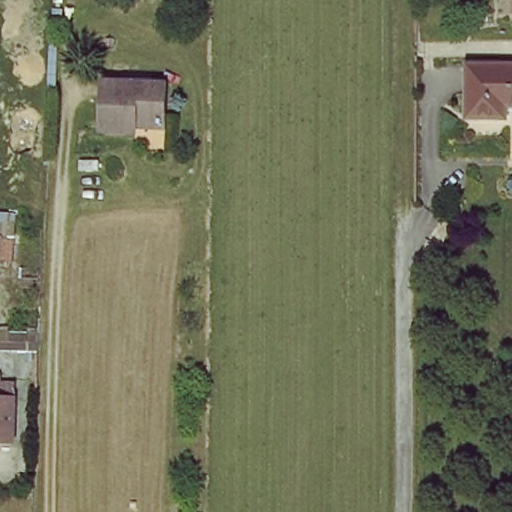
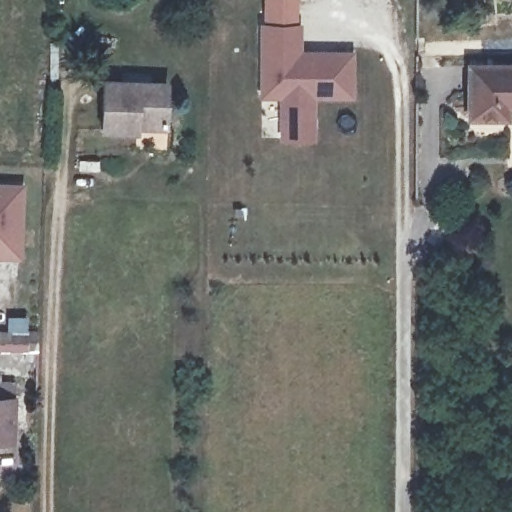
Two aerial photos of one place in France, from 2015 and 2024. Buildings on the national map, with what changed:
new [(280,140),(279,99),(259,98),(259,24),(301,24),(301,51),(353,51),(353,99),(314,98),(314,140),(280,140)]
unchanged [(503,103),(503,116),(466,115),(468,63),(512,64),(512,103),(503,103)]
unchanged [(173,86),(173,126),(142,125),(142,138),(101,135),(103,84),(173,86)]
new [(0,257),(0,182),(23,184),(20,258),(0,257)]
demolished [(4,263),(0,262),(0,238),(6,239),(4,263)]
unchanged [(33,338),(32,357),(0,355),(0,336),(33,338)]
unchanged [(0,441),(0,391),(19,393),(14,443),(0,441)]

